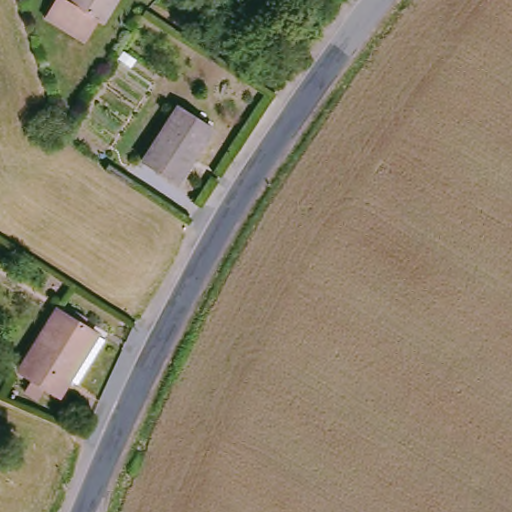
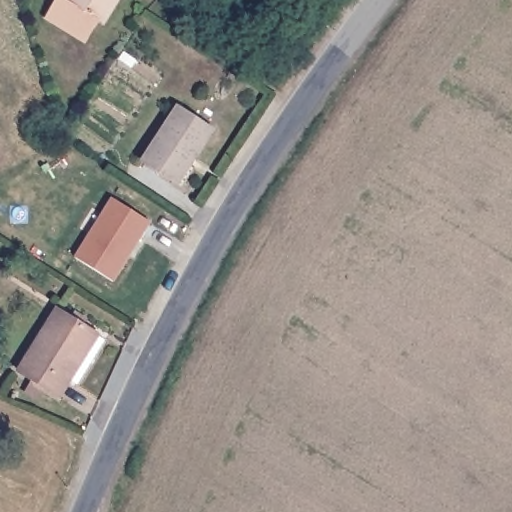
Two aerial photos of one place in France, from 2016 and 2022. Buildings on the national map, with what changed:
unchanged [(61,0),(122,0),(107,25),(102,21),(90,39),(85,45),(47,20),(51,14),(61,0)]
unchanged [(181,110),(215,133),(197,161),(195,159),(179,184),(147,163),(181,110)]
new [(150,223),(115,281),(75,257),(110,199),(150,223)]
unchanged [(60,316),(72,324),(77,318),(89,327),(85,333),(107,348),(82,387),(74,381),(64,397),(25,371),(60,316)]

